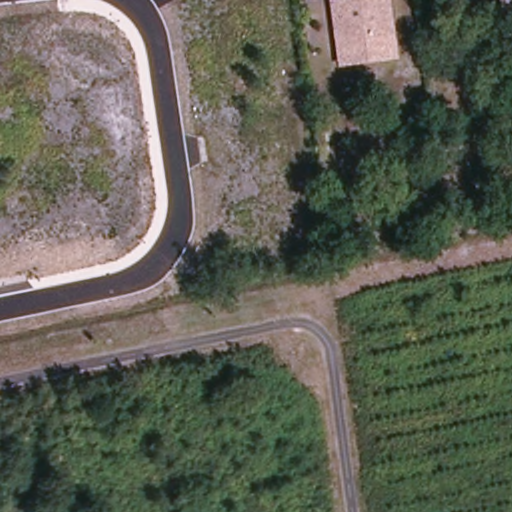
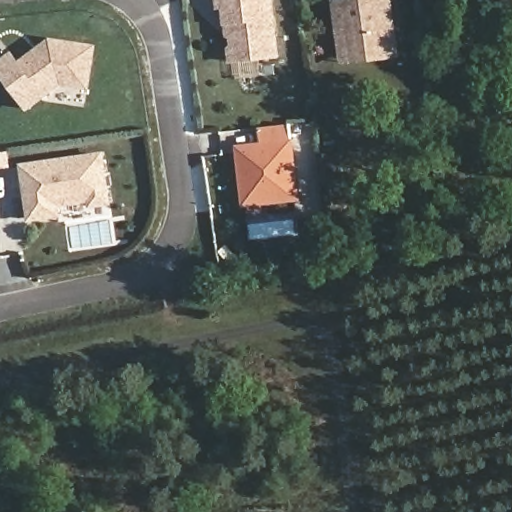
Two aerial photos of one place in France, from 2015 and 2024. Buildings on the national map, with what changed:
new [(222,9),(217,10),(216,0),(274,0),(280,55),(227,62),(222,9)]
unchanged [(343,70),(342,58),(336,17),(334,4),(367,0),(371,0),(391,0),(398,50),(400,62),(343,70)]
unchanged [(508,0),(512,0),(512,17),(507,17),(508,0)]
new [(12,55),(19,65),(48,40),(94,47),(88,87),(62,83),(29,108),(0,70),(0,65),(12,55)]
new [(301,201),(241,208),(234,146),(260,143),(258,128),(291,124),(293,140),(294,140),(301,201)]
new [(88,210),(88,203),(61,207),(63,218),(28,222),(19,164),(104,152),(112,206),(88,210)]

